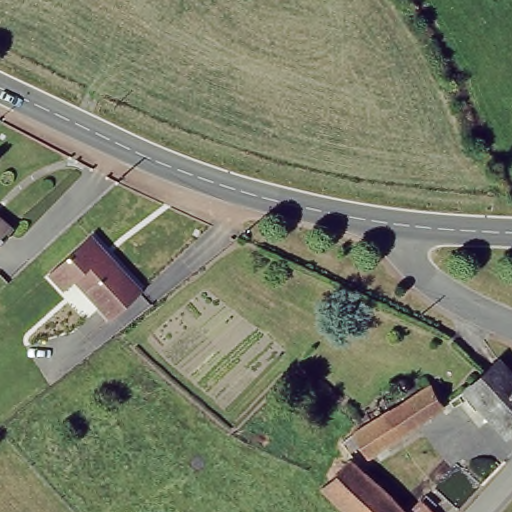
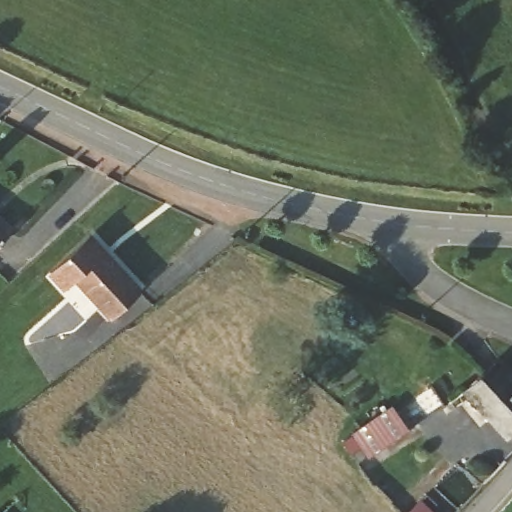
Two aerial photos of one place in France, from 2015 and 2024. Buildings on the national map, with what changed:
unchanged [(0,232),(0,220),(7,225),(0,232)]
unchanged [(135,280),(105,312),(70,278),(62,285),(45,270),(84,233),(135,280)]
unchanged [(495,361),(512,379),(512,421),(499,433),(461,391),(495,361)]
unchanged [(447,408),(352,463),(350,463),(347,437),(358,431),(365,427),(432,385),(447,408)]
demolished [(315,491),(350,463),(352,463),(404,503),(414,492),(437,512),(342,512),(315,491)]
new [(422,503),(431,512),(411,512),(422,503)]

